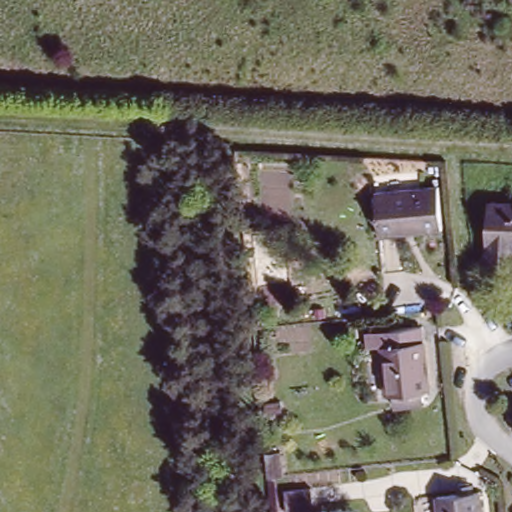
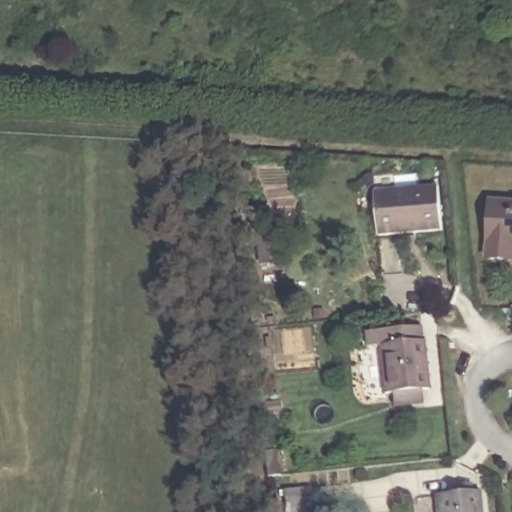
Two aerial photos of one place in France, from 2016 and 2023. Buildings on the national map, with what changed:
unchanged [(442,188),(445,236),(383,240),(380,191),(442,188)]
unchanged [(512,202),(512,260),(488,259),(491,201),(512,202)]
unchanged [(428,324),(433,384),(426,385),(427,402),(397,404),(397,391),(393,391),(390,346),(373,346),(372,328),(428,324)]
unchanged [(277,454),(280,478),(265,480),(262,455),(277,454)]
unchanged [(472,489),(483,488),(486,512),(444,512),(442,491),(462,490),(462,481),(471,481),(472,489)]
unchanged [(285,493),(310,492),(310,507),(310,512),(286,512),(285,508),(285,493)]

